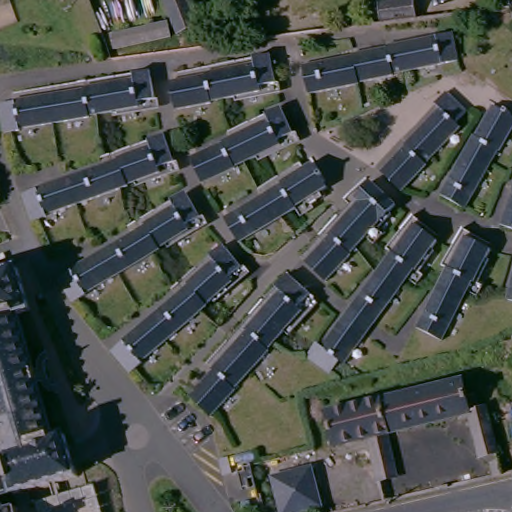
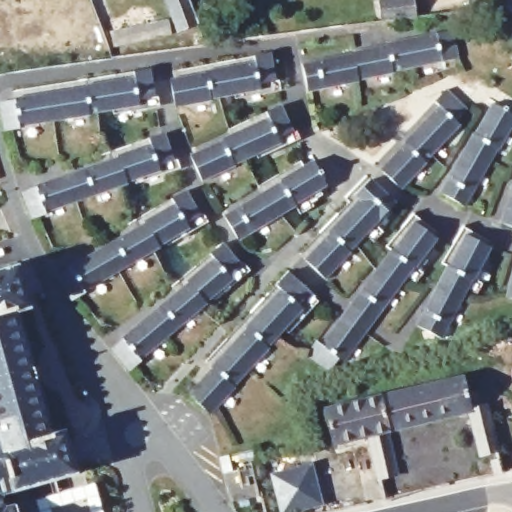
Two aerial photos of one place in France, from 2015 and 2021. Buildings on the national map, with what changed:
unchanged [(177,41),(165,7),(183,0),(186,0),(199,33),(177,41)]
unchanged [(412,22),(378,27),(375,6),(409,1),(412,22)]
unchanged [(170,29),(172,44),(116,51),(114,36),(170,29)]
unchanged [(357,89),(348,91),(323,96),(307,100),(301,71),(351,61),(350,59),(385,53),(385,51),(451,38),(456,66),(415,74),(391,79),(392,80),(390,81),(366,86),(357,88),(357,89)]
unchanged [(275,91),(234,98),(220,101),(210,103),(210,104),(210,105),(209,105),(185,110),(182,110),(175,111),(174,101),(172,84),(174,83),(204,76),(204,75),(253,65),(252,60),(269,56),(275,91)]
unchanged [(9,108),(79,98),(79,96),(116,90),(129,87),(127,81),(145,78),(150,116),(135,118),(109,121),(85,125),(85,126),(84,126),(59,130),(41,133),(16,136),(15,136),(15,138),(0,140),(0,112),(10,111),(9,108)]
unchanged [(380,178),(405,151),(403,150),(438,113),(433,109),(445,96),(463,114),(465,115),(456,125),(455,126),(459,131),(458,131),(441,150),(430,162),(425,168),(426,169),(425,171),(408,189),(400,197),(380,178)]
unchanged [(454,204),(439,195),(472,135),(474,136),(491,105),(500,110),(512,117),(512,127),(511,128),(499,150),(498,151),(497,150),(486,170),(485,171),(474,193),(470,199),(465,209),(454,204)]
unchanged [(235,169),(235,171),(233,172),(212,181),(202,186),(190,159),(222,145),(222,143),(229,140),(268,122),(267,118),(282,111),(285,118),(285,119),(293,135),(297,142),(257,160),(235,169)]
unchanged [(21,201),(32,197),(32,196),(99,172),(101,171),(100,169),(148,153),(146,146),(154,144),(162,141),(172,168),(173,172),(175,175),(130,190),(122,192),(122,194),(114,197),(90,205),(67,213),(42,222),(41,222),(42,224),(39,225),(27,230),(17,202),(21,201)]
unchanged [(277,189),(275,186),(305,168),(312,179),(322,195),(290,213),(290,215),(273,225),(270,226),(249,239),(234,247),(220,225),(277,189)]
unchanged [(507,197),(505,196),(506,194),(512,178),(512,236),(495,230),(507,197)]
unchanged [(305,263),(329,237),(328,237),(327,236),(374,186),(395,206),(388,214),(380,223),(365,239),(349,256),(350,257),(350,258),(332,277),(327,283),(305,263)]
unchanged [(55,291),(52,287),(57,284),(60,283),(67,279),(66,278),(67,276),(72,274),(76,271),(102,255),(109,252),(127,241),(141,233),(140,232),(169,214),(166,209),(181,200),(192,218),(196,224),(199,229),(160,252),(154,256),(155,257),(147,262),(125,275),(104,288),(94,294),(82,301),(81,302),(81,303),(75,307),(67,311),(55,291)]
unchanged [(317,345),(322,348),(391,254),(391,253),(393,254),(413,226),(436,243),(430,250),(415,272),(413,271),(407,280),(400,290),(385,310),(360,345),(345,365),(344,366),(338,362),(330,376),(307,359),(317,345)]
unchanged [(447,269),(450,270),(465,238),(490,250),(486,258),(475,283),(472,282),(467,292),(461,303),(450,326),(442,342),(430,335),(416,329),(447,269)]
unchanged [(122,346),(124,345),(122,344),(177,297),(188,288),(187,286),(214,263),(210,259),(224,248),(227,252),(233,259),(242,270),(245,275),(212,302),(207,308),(207,309),(200,315),(182,331),(162,347),(143,364),(142,365),(142,366),(132,375),(130,377),(112,355),(122,346)]
unchanged [(501,305),(511,265),(512,261),(512,307),(501,305)]
unchanged [(73,481),(10,498),(6,484),(0,462),(0,277),(16,273),(27,315),(18,318),(52,439),(61,436),(73,481)]
unchanged [(184,404),(209,378),(207,377),(242,339),(241,338),(275,300),(270,295),(283,280),(307,303),(311,306),(310,307),(280,339),(263,357),(265,359),(263,360),(247,378),(230,397),(231,398),(230,399),(213,417),(206,425),(184,404)]
unchanged [(377,483),(367,439),(331,448),(323,414),(328,413),(385,400),(442,387),(460,383),(468,415),(383,435),(393,479),(377,483)]
unchanged [(468,415),(485,410),(495,454),(477,458),(468,415)]
unchanged [(0,462),(6,484),(10,498),(0,501),(0,462)]
unchanged [(500,479),(491,481),(487,465),(497,463),(500,479)]
unchanged [(254,478),(245,480),(247,487),(240,489),(237,472),(244,471),(243,469),(251,467),(254,478)]
unchanged [(318,504),(278,512),(276,512),(268,478),(311,468),(318,504)]

